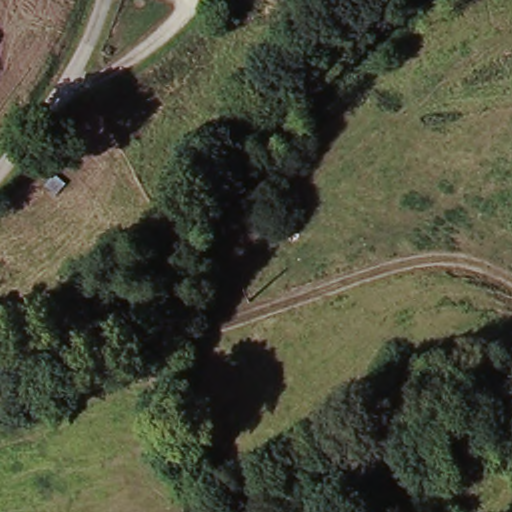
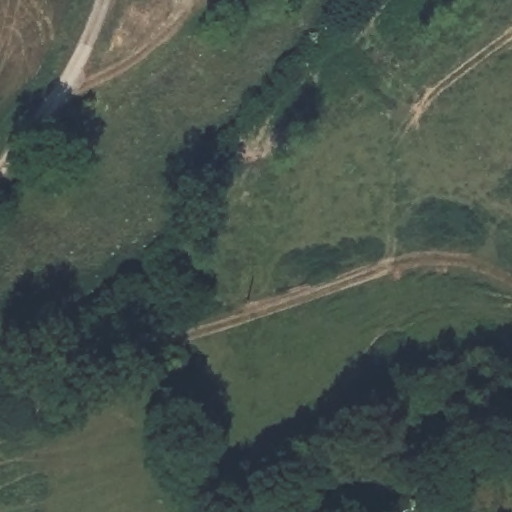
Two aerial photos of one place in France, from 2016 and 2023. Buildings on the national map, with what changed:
unchanged [(373,512),(354,512),(342,494),(382,466),(400,495),(373,512)]

